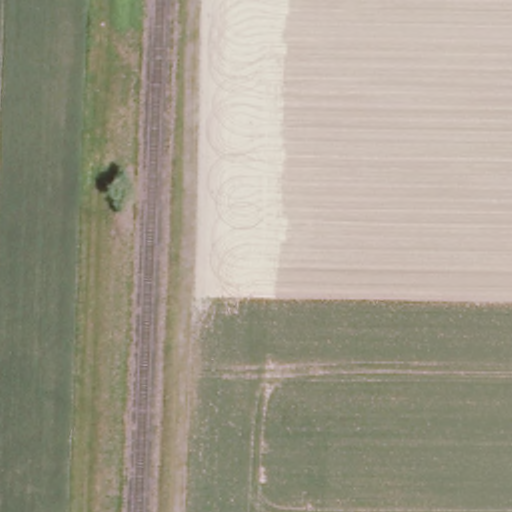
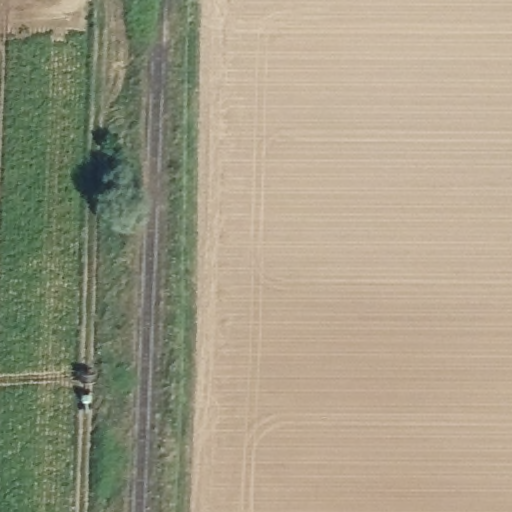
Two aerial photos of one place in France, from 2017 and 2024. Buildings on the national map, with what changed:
[]

